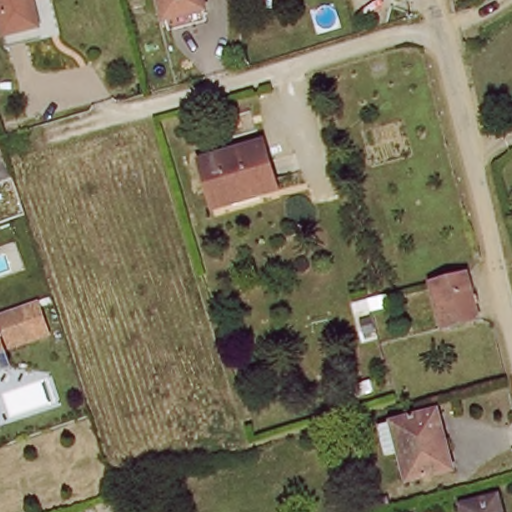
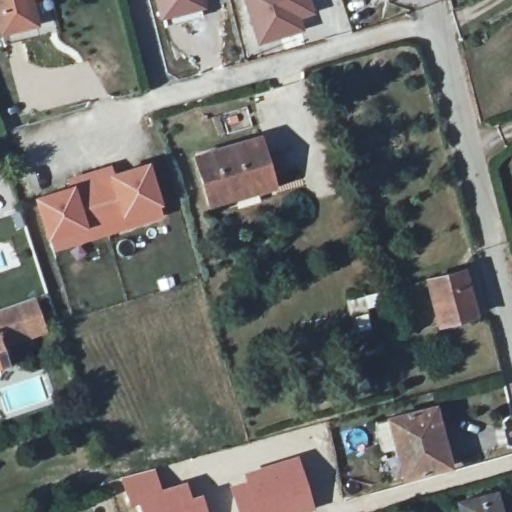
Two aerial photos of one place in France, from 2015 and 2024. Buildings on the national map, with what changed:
unchanged [(32,28),(0,37),(0,0),(24,0),(32,28)]
unchanged [(203,6),(162,17),(158,0),(201,0),(203,6)]
new [(312,8),(297,12),(299,17),(278,23),(281,31),(260,37),(248,0),(309,0),(312,8)]
unchanged [(237,203),(212,209),(199,156),(263,140),(276,185),(279,193),(237,203)]
new [(66,188),(65,180),(112,164),(113,173),(150,163),(162,207),(159,208),(164,219),(55,252),(50,241),(47,242),(34,200),(66,188)]
unchanged [(473,317),(436,327),(425,281),(462,271),(473,317)]
unchanged [(15,306),(26,339),(0,348),(0,311),(15,306)]
unchanged [(3,366),(0,367),(0,359),(3,366)]
unchanged [(430,409),(447,466),(403,476),(387,419),(430,409)]
new [(242,472),(298,454),(314,508),(304,512),(238,512),(229,484),(244,479),(242,472)]
new [(161,487),(186,480),(191,495),(201,492),(207,512),(138,512),(136,503),(129,505),(120,477),(155,467),(161,487)]
unchanged [(503,512),(462,512),(459,500),(498,489),(503,512)]

